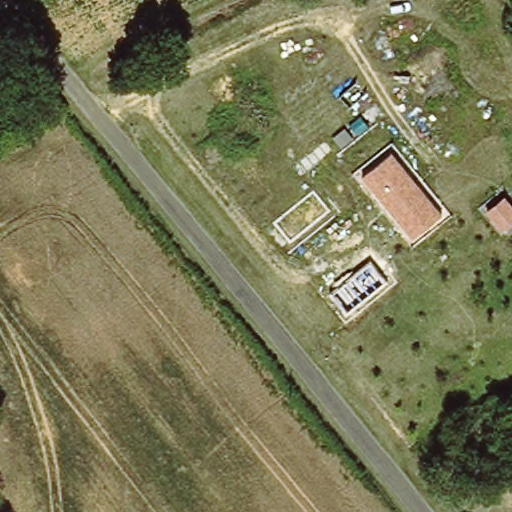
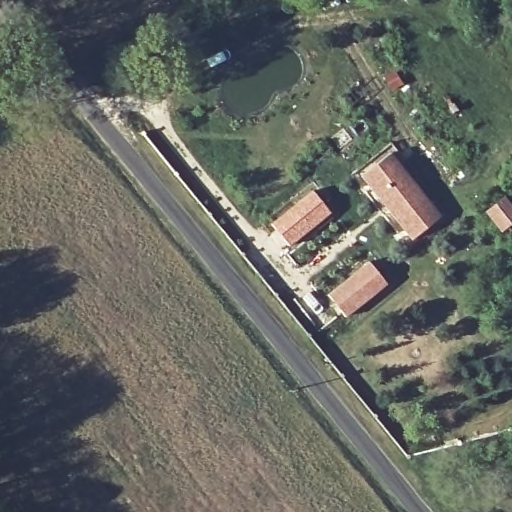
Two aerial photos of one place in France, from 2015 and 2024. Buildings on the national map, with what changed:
unchanged [(370,124),(361,112),(372,105),(382,115),(370,124)]
unchanged [(356,118),(365,127),(353,137),(345,127),(356,118)]
unchanged [(388,150),(440,212),(411,237),(360,174),(388,150)]
new [(314,190),(331,212),(290,245),(272,225),(314,190)]
unchanged [(506,230),(490,210),(506,199),(512,205),(512,225),(506,230)]
new [(366,262),(385,283),(343,317),(327,295),(366,262)]

